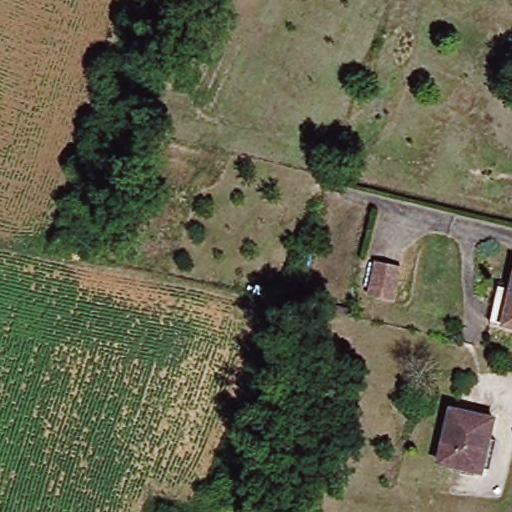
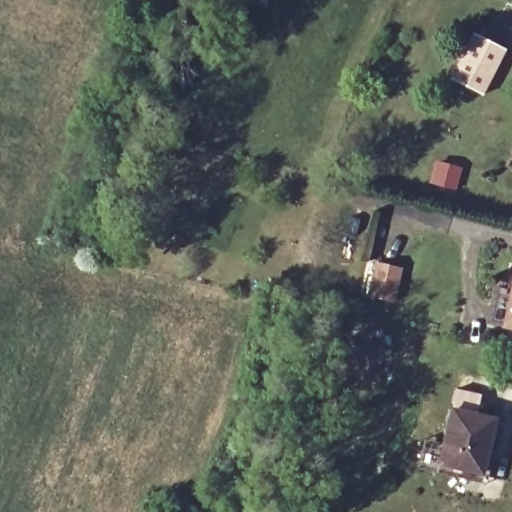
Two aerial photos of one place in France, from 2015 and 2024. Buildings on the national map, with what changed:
new [(502,58),(483,94),(450,78),(471,36),(488,45),(486,50),(502,58)]
unchanged [(394,307),(369,302),(378,267),(403,273),(394,307)]
unchanged [(512,285),(512,325),(504,323),(492,320),(501,283),(512,285)]
unchanged [(449,465),(437,460),(449,410),(491,420),(486,435),(492,437),(487,465),(482,465),(479,471),(471,470),(468,476),(449,472),(449,465)]

